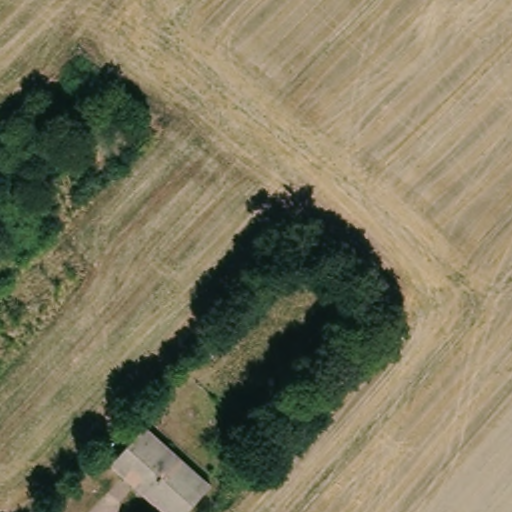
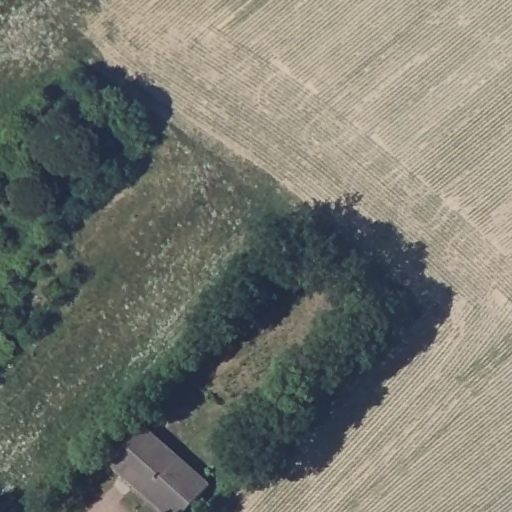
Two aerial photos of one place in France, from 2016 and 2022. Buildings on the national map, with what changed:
unchanged [(143,427),(207,483),(183,512),(170,512),(112,462),(143,427)]

